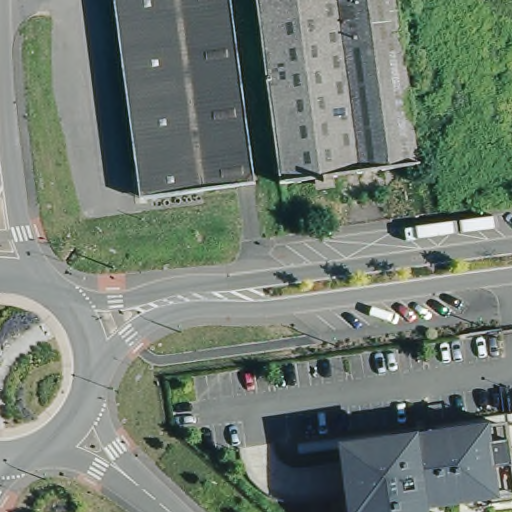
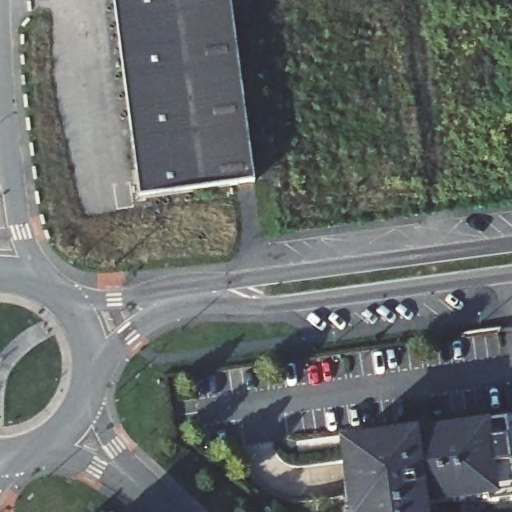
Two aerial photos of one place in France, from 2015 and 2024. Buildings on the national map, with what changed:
unchanged [(255,182),(140,196),(116,0),(233,0),(255,182)]
demolished [(253,0),(396,0),(417,167),(275,185),(253,0)]
unchanged [(498,429),(510,506),(482,510),(480,503),(417,512),(347,512),(345,490),(340,490),(335,452),(498,429)]

